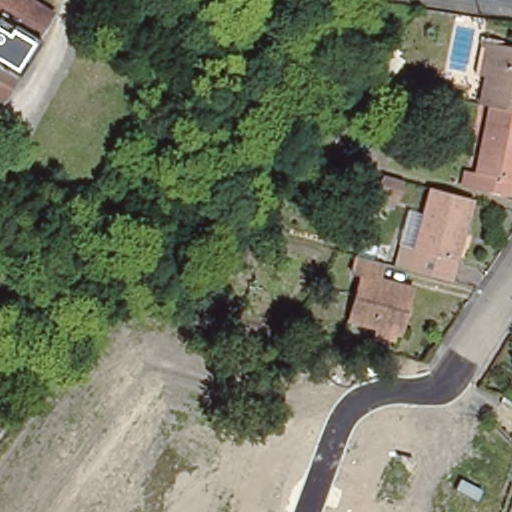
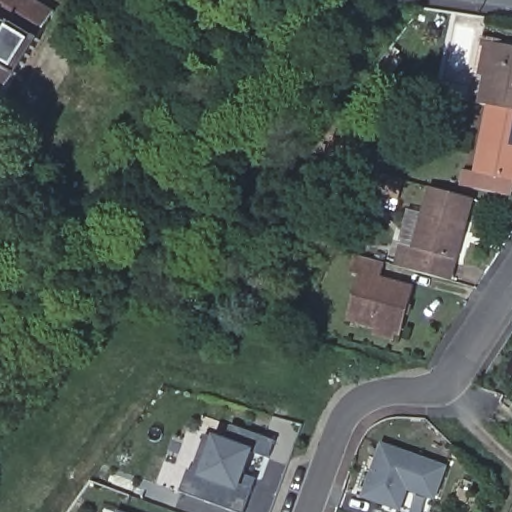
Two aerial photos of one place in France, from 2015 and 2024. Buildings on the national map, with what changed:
unchanged [(33,44),(34,46),(0,100),(0,0),(33,0),(53,13),(33,44)]
unchanged [(487,105),(479,103),(491,43),(512,48),(512,110),(503,108),(487,105)]
unchanged [(504,196),(487,193),(471,188),(487,105),(503,108),(512,110),(512,193),(506,191),(504,196)]
unchanged [(401,179),(395,198),(372,191),(382,173),(401,179)]
unchanged [(447,279),(405,268),(427,186),(449,192),(469,198),(447,279)]
unchanged [(377,333),(378,325),(350,317),(361,275),(350,270),(354,253),(383,261),(379,278),(412,287),(400,330),(394,329),(392,336),(377,333)]
new [(251,452),(244,475),(255,479),(244,512),(239,512),(182,491),(204,433),(225,441),(232,425),(274,442),(267,458),(251,452)]
new [(406,489),(399,510),(362,496),(380,445),(444,468),(433,499),(406,489)]

